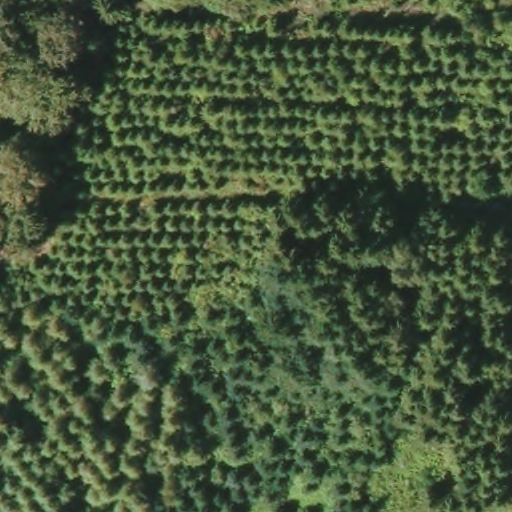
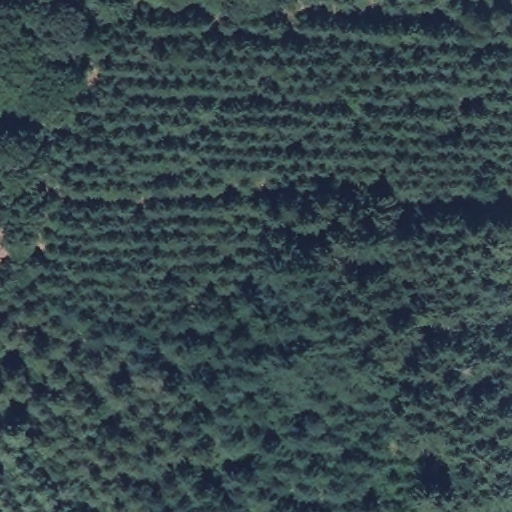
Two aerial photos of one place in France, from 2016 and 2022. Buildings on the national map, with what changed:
[]

